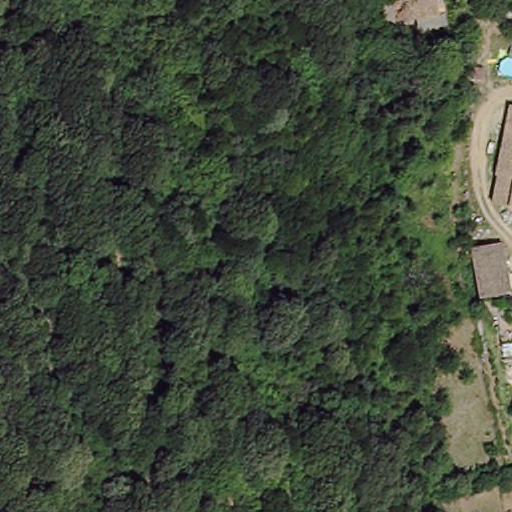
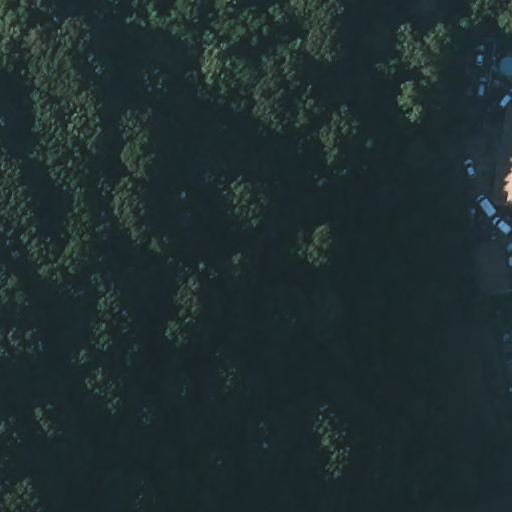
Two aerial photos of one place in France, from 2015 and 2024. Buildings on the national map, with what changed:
unchanged [(399,25),(380,28),(375,4),(404,0),(416,0),(421,21),(399,25)]
unchanged [(421,34),(421,37),(402,40),(399,25),(427,20),(429,32),(421,34)]
unchanged [(491,206),(496,177),(492,177),(504,107),(512,108),(512,216),(506,208),(491,206)]
unchanged [(505,294),(474,299),(465,249),(496,244),(505,294)]
unchanged [(508,471),(502,433),(512,432),(512,470),(508,471)]

